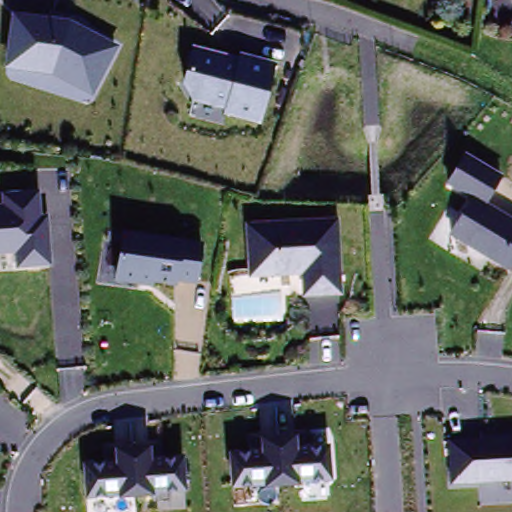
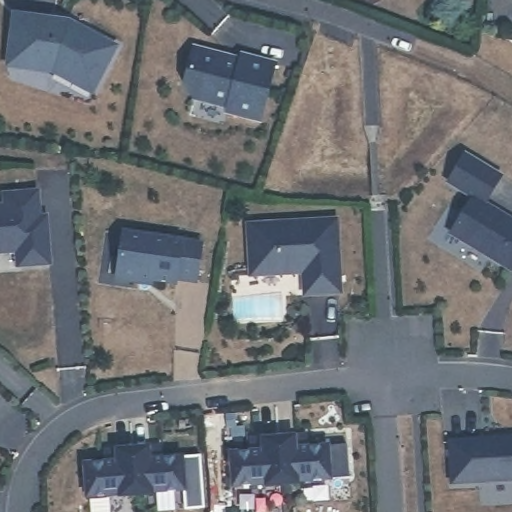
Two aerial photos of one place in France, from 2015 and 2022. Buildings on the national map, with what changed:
unchanged [(71,22),(120,51),(100,92),(50,65),(9,63),(12,11),(71,22)]
unchanged [(275,61),(261,126),(220,116),(225,102),(184,94),(194,42),(275,61)]
unchanged [(41,220),(44,220),(49,270),(16,272),(12,252),(0,252),(0,192),(37,191),(41,220)]
unchanged [(512,221),(512,267),(452,235),(470,197),(512,221)]
unchanged [(337,220),(341,296),(304,297),(302,274),(247,277),(243,222),(337,220)]
unchanged [(204,244),(199,289),(153,283),(152,288),(114,282),(122,229),(204,244)]
unchanged [(249,450),(248,436),(297,433),(299,447),(328,446),(332,486),(228,490),(224,452),(249,450)]
unchanged [(512,435),(512,480),(447,484),(445,439),(512,435)]
unchanged [(101,460),(101,448),(151,445),(152,458),(183,457),(187,493),(82,497),(80,460),(101,460)]

